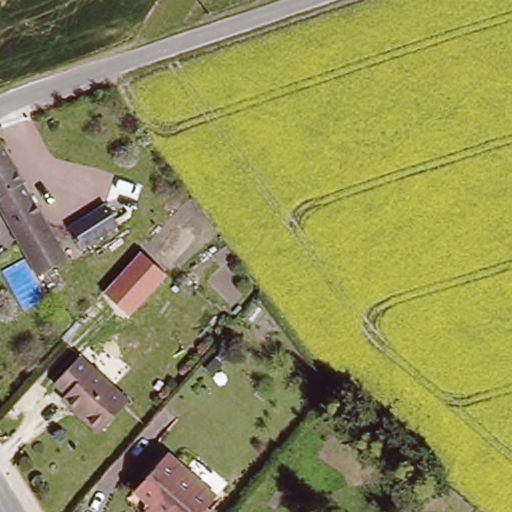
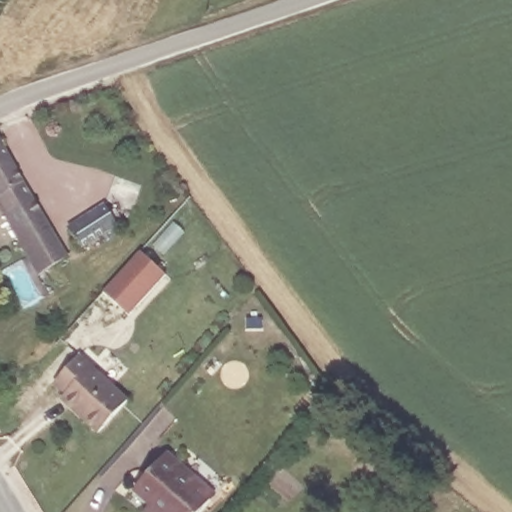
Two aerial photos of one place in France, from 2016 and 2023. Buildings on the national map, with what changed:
unchanged [(41,275),(0,208),(0,145),(69,259),(41,275)]
unchanged [(107,202),(119,224),(82,246),(69,225),(107,202)]
unchanged [(166,274),(130,316),(103,293),(139,252),(166,274)]
unchanged [(67,394),(55,383),(82,355),(129,400),(98,433),(82,417),(63,398),(67,394)]
unchanged [(202,512),(158,512),(133,488),(166,452),(185,470),(206,490),(215,497),(211,501),(202,512)]

